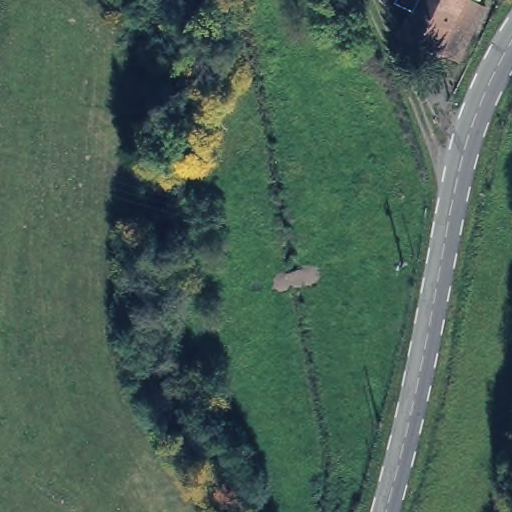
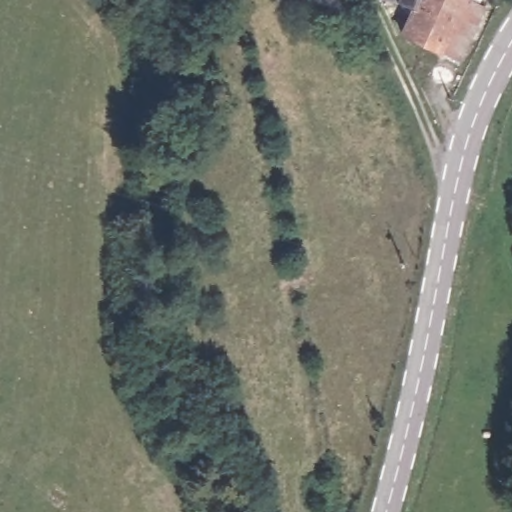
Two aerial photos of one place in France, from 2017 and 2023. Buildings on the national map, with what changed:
unchanged [(474,3),(479,6),(454,59),(399,31),(408,10),(384,0),(475,0),(474,3)]

